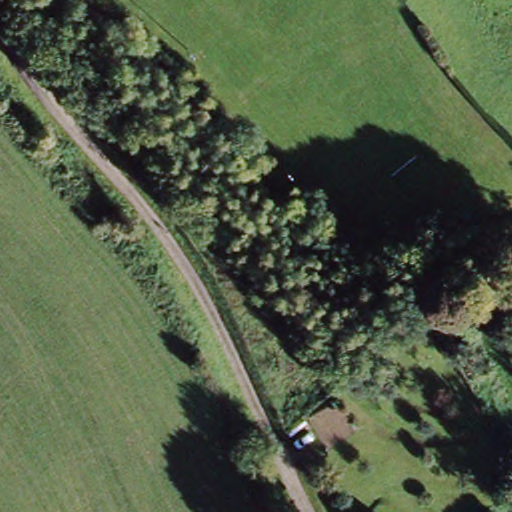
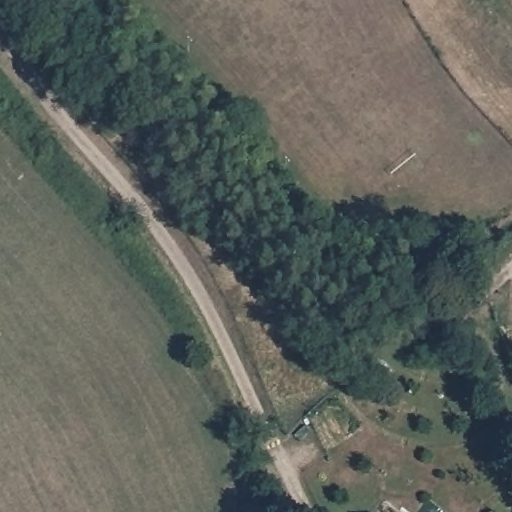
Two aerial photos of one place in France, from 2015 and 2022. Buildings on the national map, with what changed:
[]

